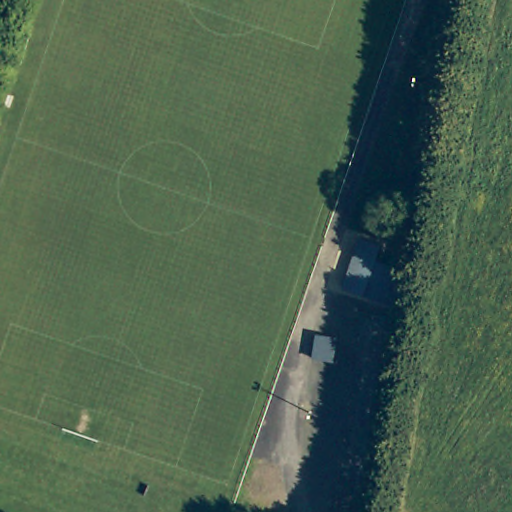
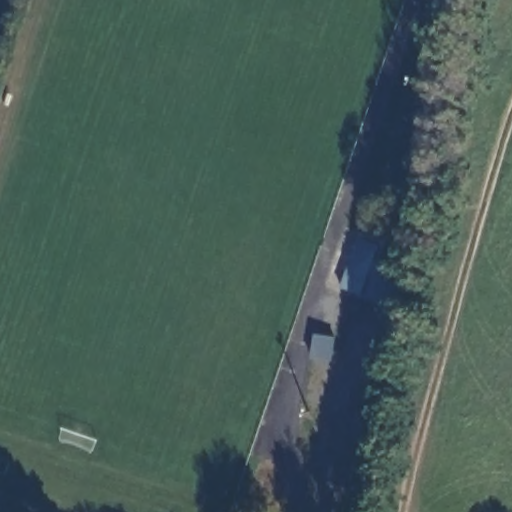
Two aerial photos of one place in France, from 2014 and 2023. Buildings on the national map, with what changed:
unchanged [(369,241),(388,249),(383,264),(372,297),(354,291),(369,241)]
unchanged [(315,334),(330,337),(336,337),(334,359),(312,357),(315,334)]

